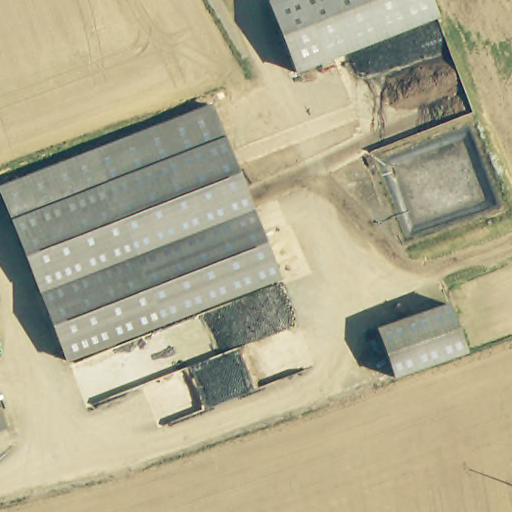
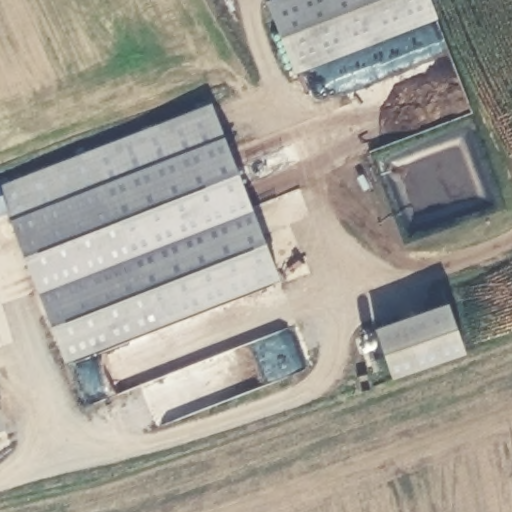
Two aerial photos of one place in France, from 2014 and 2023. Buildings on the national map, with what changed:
unchanged [(428,0),(434,17),(295,71),(268,1),(271,0),(428,0)]
unchanged [(67,359),(0,185),(211,104),(278,277),(67,359)]
unchanged [(465,349),(439,358),(392,374),(376,327),(448,302),(465,349)]
unchanged [(4,424),(0,425),(0,405),(4,424)]

